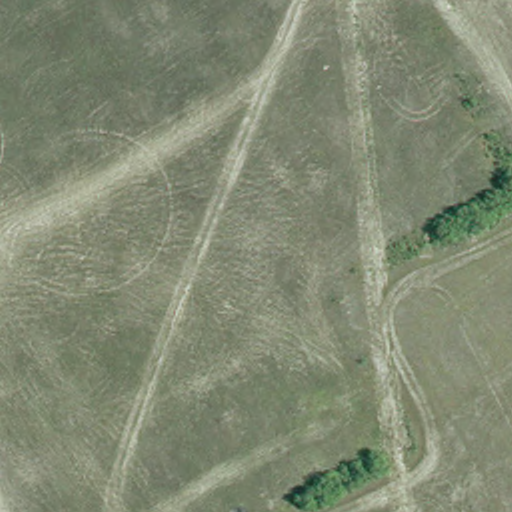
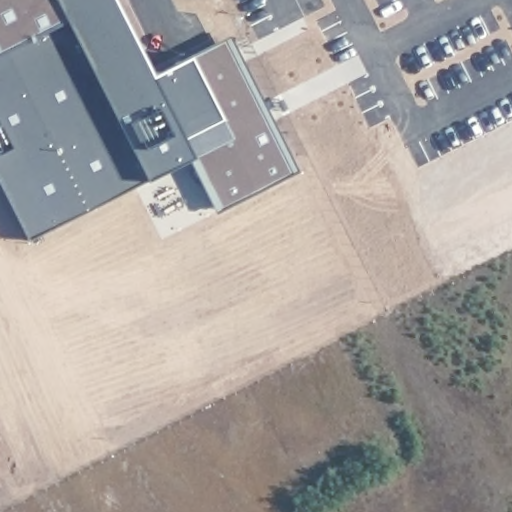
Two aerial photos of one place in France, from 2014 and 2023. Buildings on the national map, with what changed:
new [(0,186),(0,0),(111,0),(151,78),(228,42),(293,169),(216,206),(192,158),(52,222),(25,237),(0,186)]

